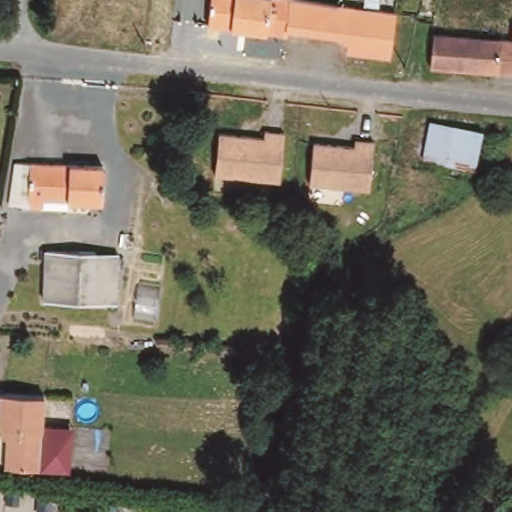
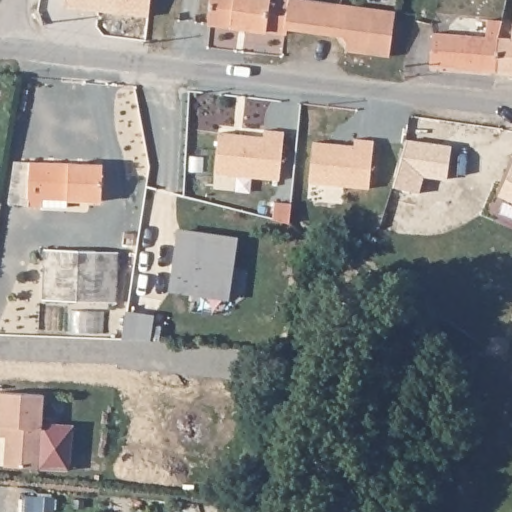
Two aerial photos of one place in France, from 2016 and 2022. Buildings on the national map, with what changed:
new [(65,0),(150,0),(149,14),(65,4),(65,0)]
unchanged [(286,26),(285,31),(212,22),(215,0),(290,0),(286,26)]
unchanged [(341,3),(397,8),(392,53),(349,48),(350,39),(346,34),(286,26),(290,0),(329,0),(341,3)]
unchanged [(498,36),(493,72),(429,62),(435,28),(498,36)]
unchanged [(512,38),(512,75),(493,72),(498,36),(512,38)]
unchanged [(279,177),(216,169),(221,128),(265,134),(266,127),(285,129),(279,177)]
unchanged [(367,191),(308,181),(315,139),(355,146),(356,138),(376,142),(367,191)]
new [(451,148),(447,179),(423,176),(419,192),(394,186),(407,140),(451,148)]
unchanged [(104,201),(63,198),(61,208),(18,204),(21,160),(107,168),(106,172),(105,191),(104,201)]
new [(512,168),(512,194),(503,190),(512,168)]
unchanged [(0,211),(0,193),(3,193),(0,211)]
new [(214,292),(169,285),(178,227),(233,236),(225,283),(224,293),(214,292)]
unchanged [(98,249),(97,300),(51,299),(53,249),(98,249)]
new [(124,311),(149,315),(145,340),(120,337),(124,311)]
unchanged [(6,425),(0,425),(0,390),(41,393),(41,423),(39,468),(5,466),(6,425)]
unchanged [(70,469),(39,468),(41,423),(71,425),(70,469)]

